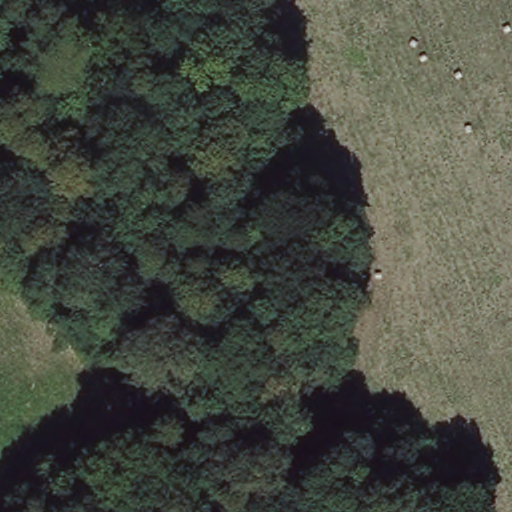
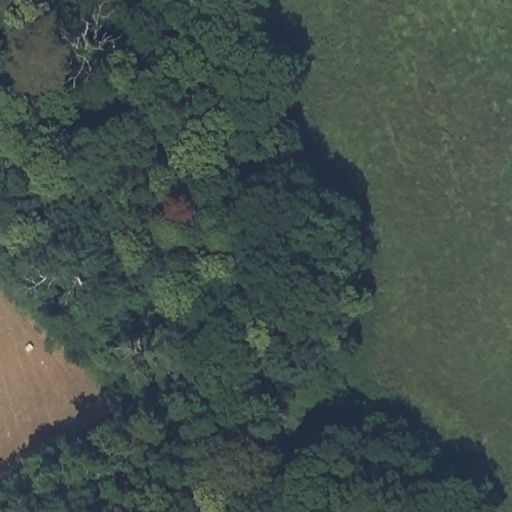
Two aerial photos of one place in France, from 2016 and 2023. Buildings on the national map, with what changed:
[]

